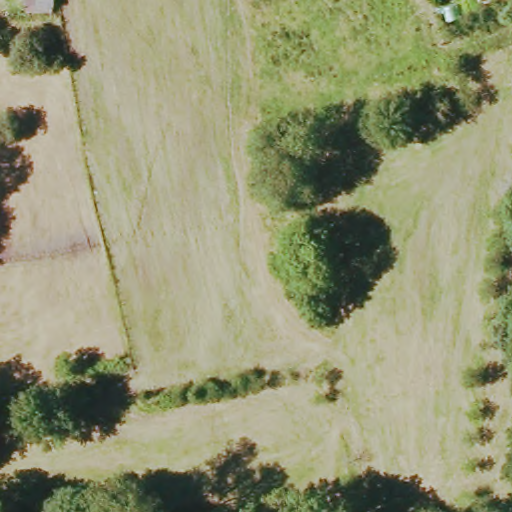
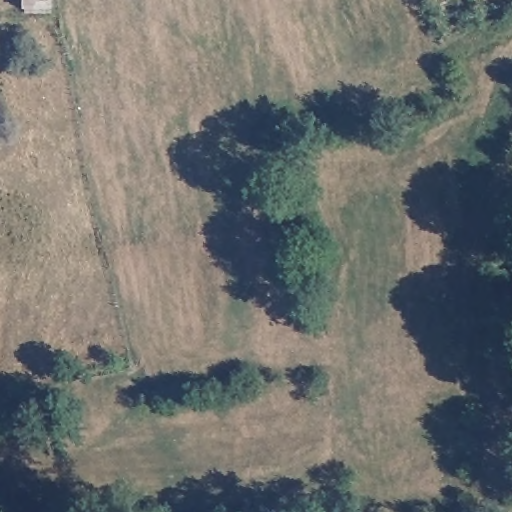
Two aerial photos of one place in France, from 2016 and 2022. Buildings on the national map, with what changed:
unchanged [(22,16),(22,0),(48,0),(50,14),(22,16)]

